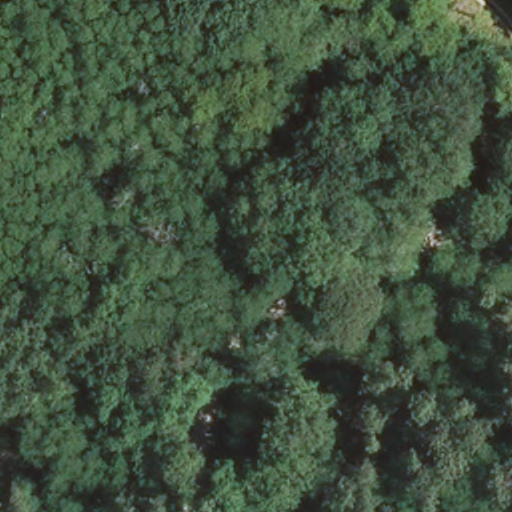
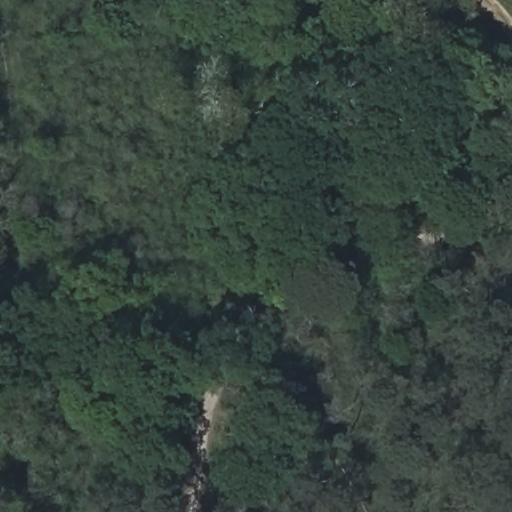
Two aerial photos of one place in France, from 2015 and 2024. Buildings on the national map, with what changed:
[]

